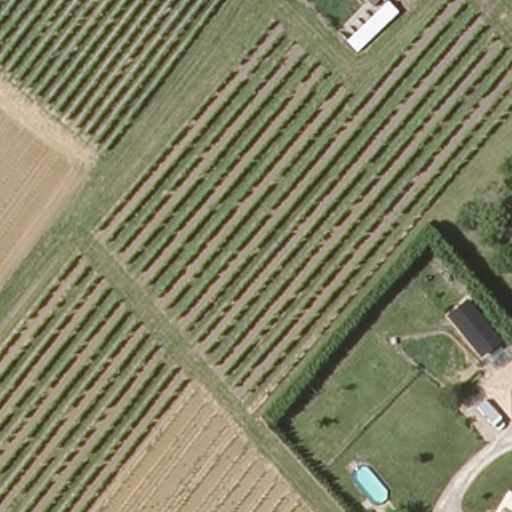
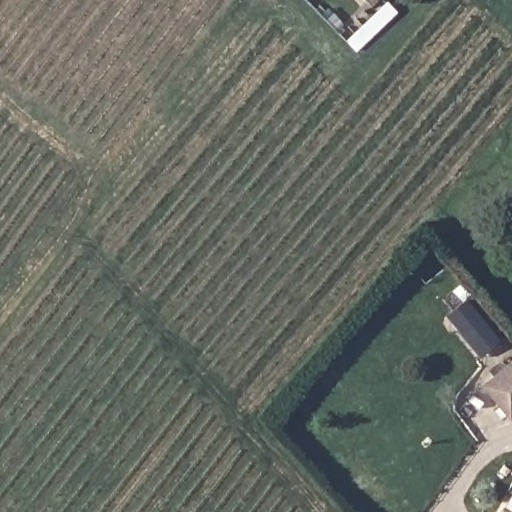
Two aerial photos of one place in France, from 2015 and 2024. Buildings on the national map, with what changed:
unchanged [(367,0),(378,0),(372,6),(367,0)]
unchanged [(512,365),(512,413),(487,385),(512,365)]
unchanged [(512,506),(512,512),(501,512),(507,502),(512,506)]

